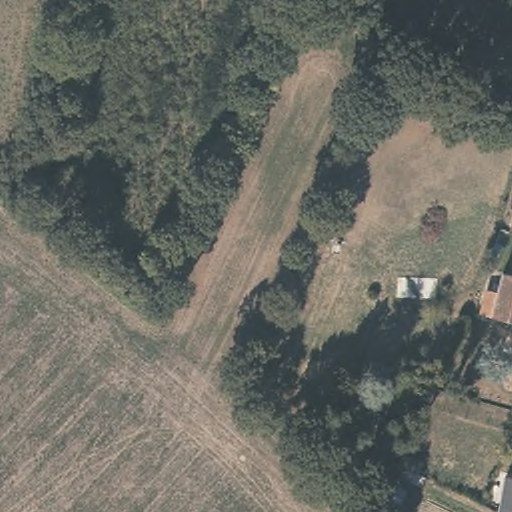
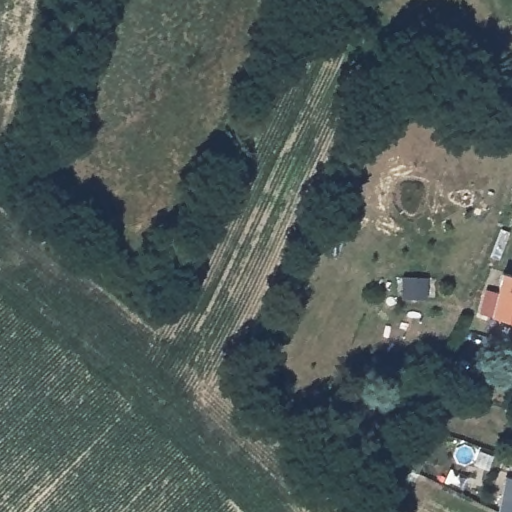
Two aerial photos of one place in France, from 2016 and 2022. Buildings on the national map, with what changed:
unchanged [(512,269),(512,315),(496,310),(508,267),(512,269)]
unchanged [(507,508),(512,484),(512,511),(507,508)]

